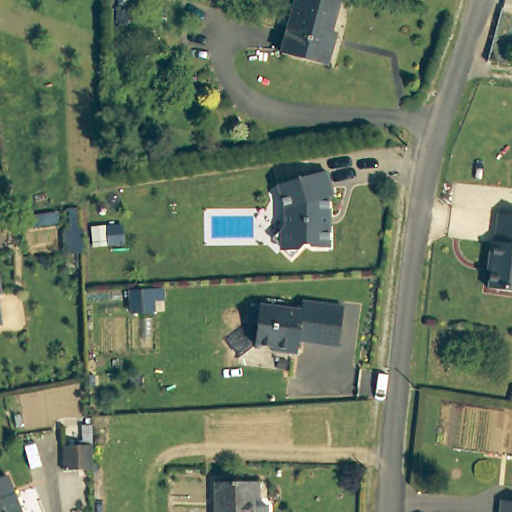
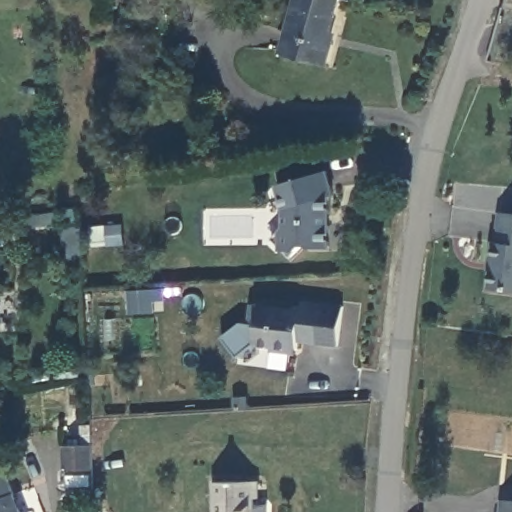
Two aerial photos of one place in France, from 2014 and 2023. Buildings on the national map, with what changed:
unchanged [(295,0),(338,0),(326,45),(331,47),(325,68),(280,56),(286,35),(295,0)]
unchanged [(326,172),(332,195),(328,196),(328,214),(326,216),(325,223),(328,226),(327,248),(310,248),(307,246),(302,246),(290,257),(271,238),(283,226),(283,210),(277,185),(326,172)]
unchanged [(512,211),(512,288),(487,285),(492,257),(489,256),(491,238),(494,239),(498,209),(512,211)]
unchanged [(83,230),(83,252),(66,253),(65,227),(83,227),(83,230)]
unchanged [(139,289),(161,287),(161,298),(151,299),(152,310),(128,312),(127,290),(139,289)]
unchanged [(0,294),(0,291),(1,293),(0,294)]
unchanged [(341,307),(336,347),(296,342),(295,349),(289,353),(270,351),(270,347),(252,345),(255,325),(248,324),(251,303),(299,311),(300,301),(341,307)]
unchanged [(0,325),(0,316),(1,325),(0,325)]
unchanged [(90,436),(91,461),(61,462),(61,437),(90,436)]
unchanged [(7,479),(20,512),(0,512),(0,478),(6,476),(7,479)]
unchanged [(257,477),(257,494),(252,495),(253,512),(213,512),(213,477),(257,477)]
unchanged [(512,502),(512,512),(499,512),(501,501),(512,502)]

